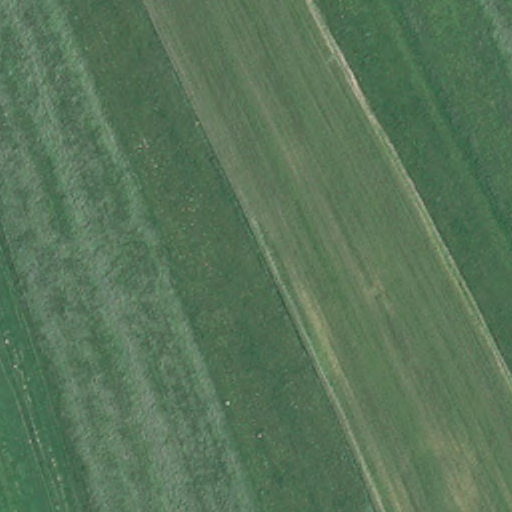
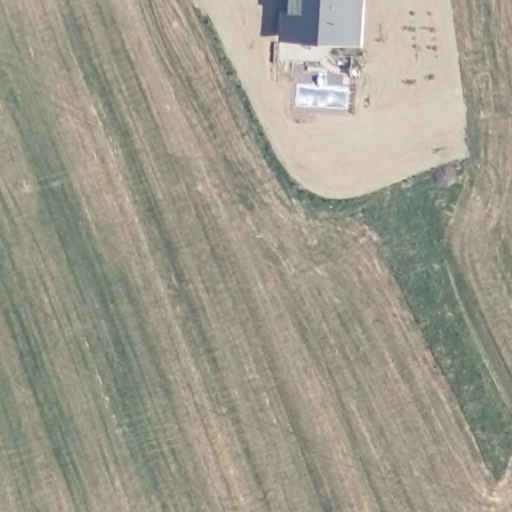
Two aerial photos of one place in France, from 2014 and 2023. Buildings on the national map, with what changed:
new [(365,43),(282,39),(283,0),(366,0),(365,43)]

